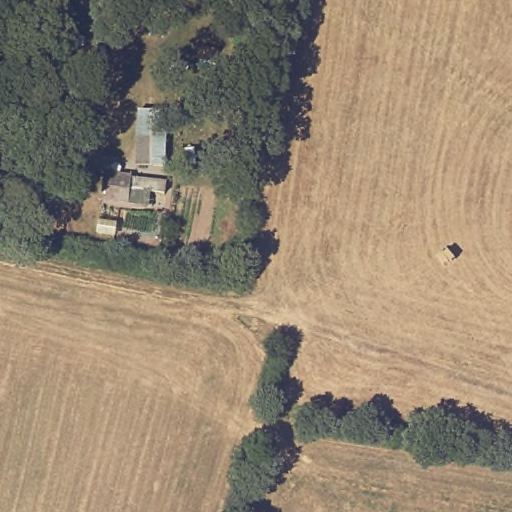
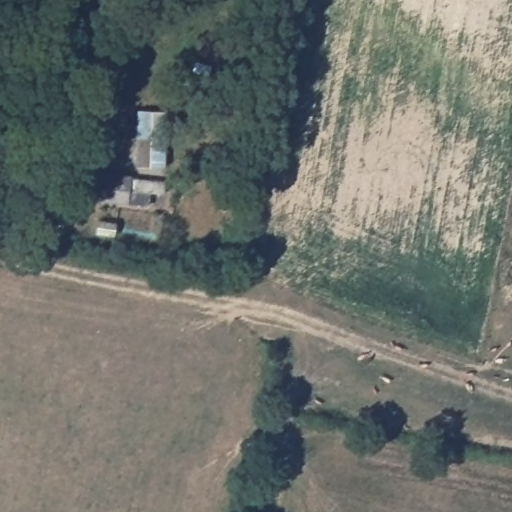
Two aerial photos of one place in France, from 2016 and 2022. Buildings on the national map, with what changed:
unchanged [(140,116),(169,119),(166,176),(137,175),(140,116)]
unchanged [(148,209),(102,204),(104,177),(131,179),(131,183),(166,187),(165,197),(149,196),(148,209)]

